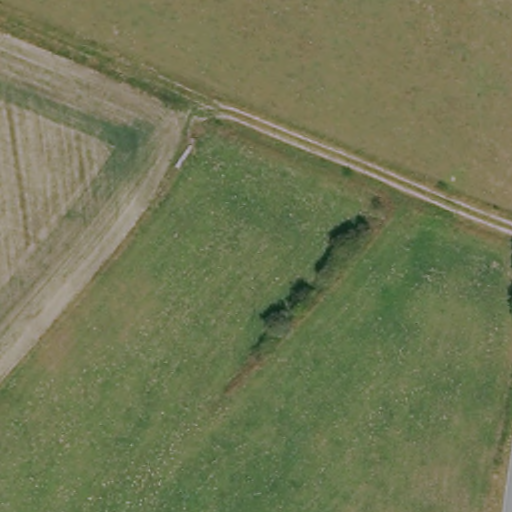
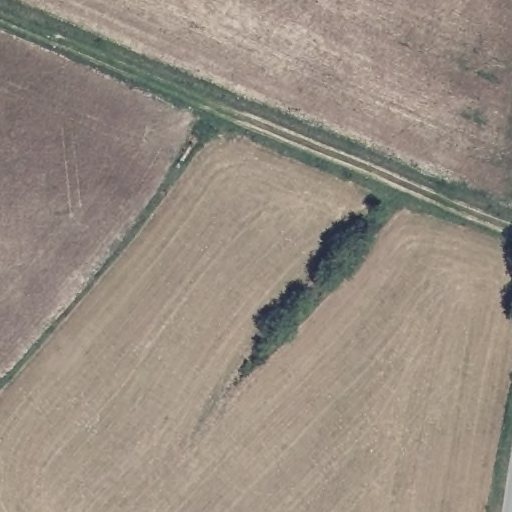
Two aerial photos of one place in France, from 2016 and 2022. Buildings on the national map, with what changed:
[]

